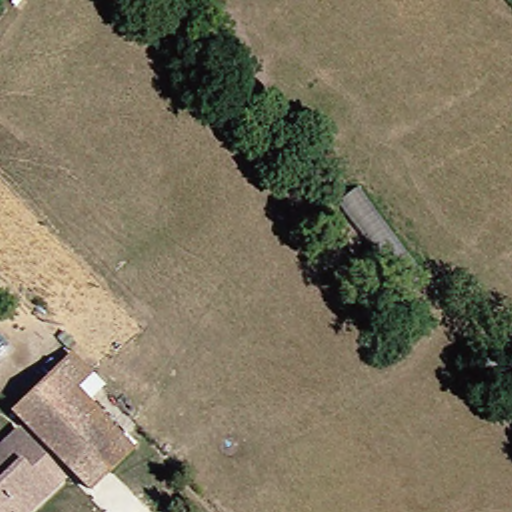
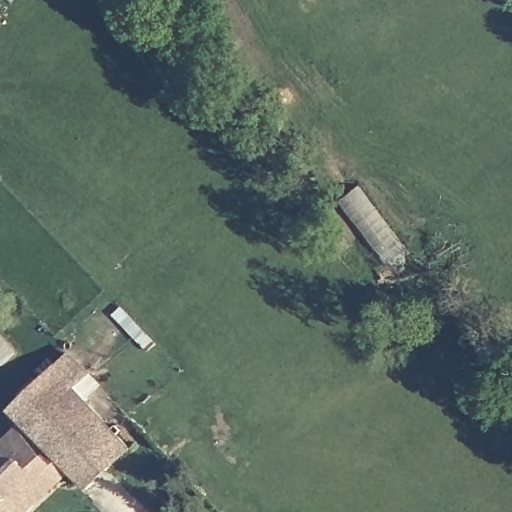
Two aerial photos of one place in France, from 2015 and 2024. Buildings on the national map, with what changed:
unchanged [(14,350),(0,363),(0,336),(14,350)]
unchanged [(67,390),(105,436),(61,476),(2,408),(68,355),(85,376),(67,390)]
unchanged [(9,431),(40,468),(0,504),(0,438),(9,431)]
unchanged [(122,456),(76,494),(61,476),(105,436),(122,456)]
unchanged [(52,482),(17,512),(4,512),(0,508),(0,504),(40,468),(52,482)]

